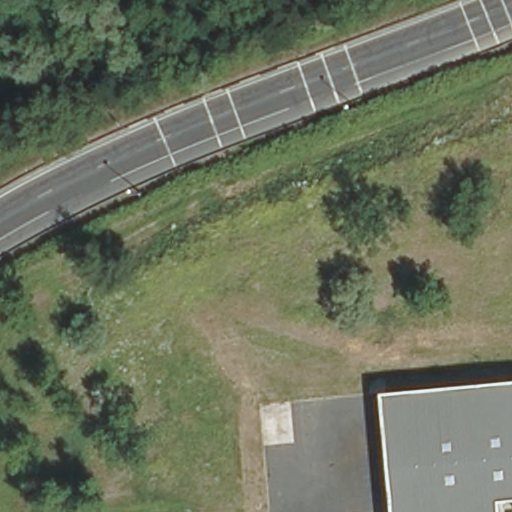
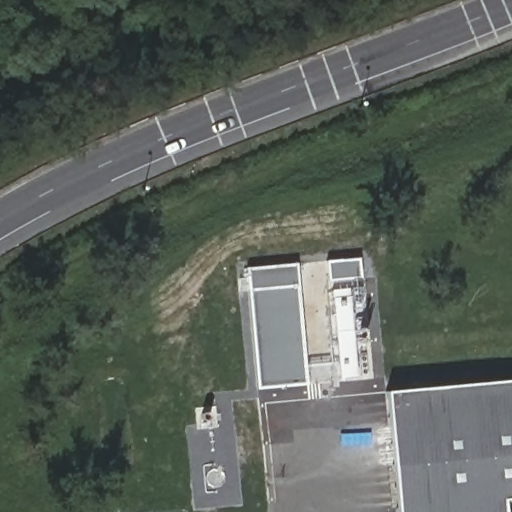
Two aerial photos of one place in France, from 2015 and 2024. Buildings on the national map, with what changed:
new [(358,258),(361,278),(356,279),(355,287),(360,287),(362,307),(350,308),(356,376),(339,378),(338,363),(330,364),(324,292),(331,291),(330,281),(328,281),(325,261),(358,258)]
new [(258,387),(249,271),(294,267),(303,383),(258,387)]
unchanged [(386,392),(512,380),(512,512),(398,512),(386,392)]

